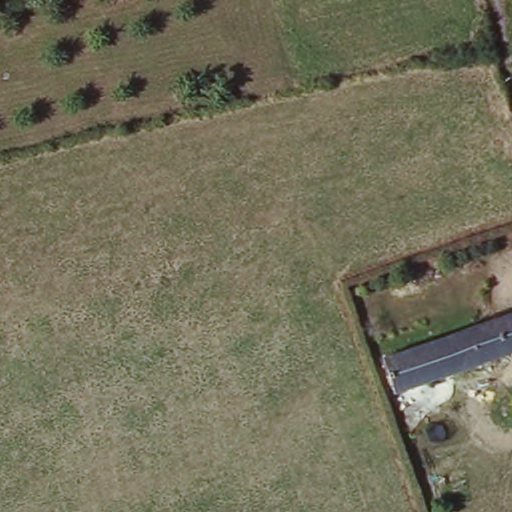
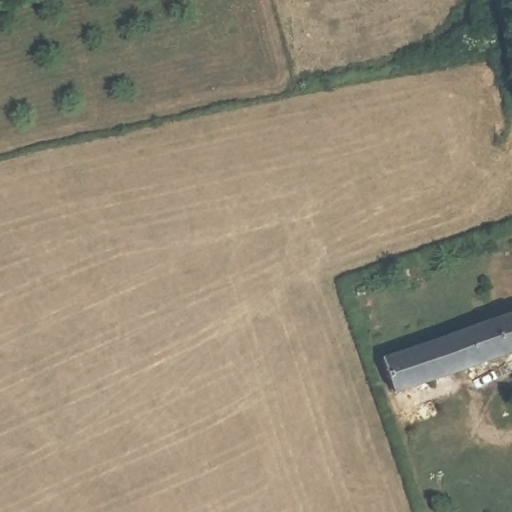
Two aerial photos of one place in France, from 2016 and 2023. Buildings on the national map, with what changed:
unchanged [(399,392),(387,356),(512,314),(512,354),(399,392)]

